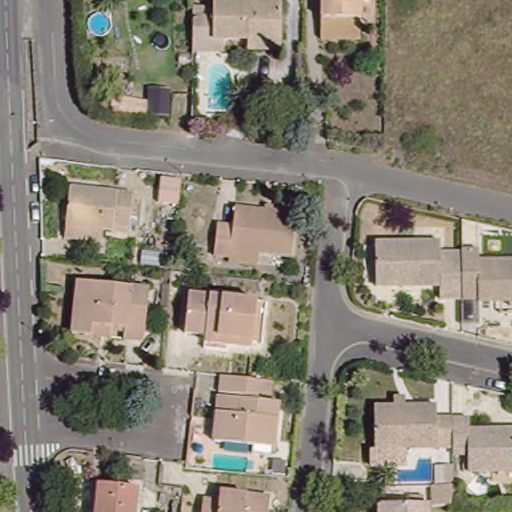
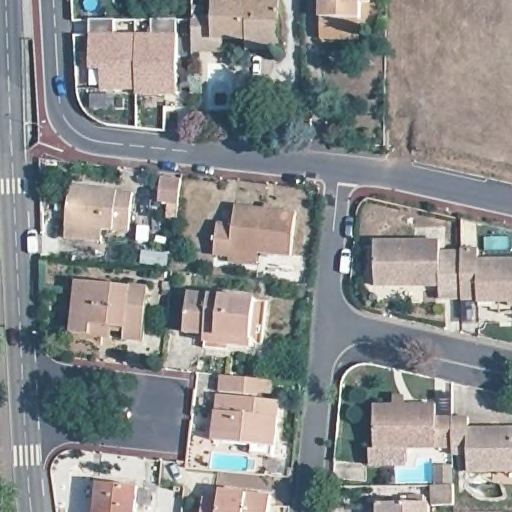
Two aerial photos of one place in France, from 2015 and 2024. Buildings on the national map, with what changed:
unchanged [(249,40),(249,30),(217,30),(217,0),(287,0),(287,40),(249,40)]
unchanged [(350,15),(349,30),(325,31),(325,0),(362,0),(362,13),(350,15)]
new [(102,89),(102,69),(91,70),(90,19),(115,19),(115,34),(136,33),(138,89),(102,89)]
new [(178,58),(179,93),(138,94),(136,33),(194,33),(194,58),(178,58)]
unchanged [(137,185),(136,214),(124,214),(124,228),(73,226),(75,182),(137,185)]
new [(155,187),(175,190),(172,215),(153,212),(155,187)]
unchanged [(302,222),(297,260),(243,255),(242,262),(222,260),(225,230),(242,231),(243,217),(302,222)]
unchanged [(446,294),(446,284),(387,283),(386,239),(443,238),(445,247),(472,248),(473,295),(446,294)]
unchanged [(489,260),(512,260),(512,295),(473,295),(472,248),(488,248),(489,260)]
unchanged [(155,281),(151,333),(78,328),(82,276),(155,281)]
unchanged [(266,289),(262,334),(228,330),(230,319),(198,316),(202,282),(266,289)]
unchanged [(249,383),(218,381),(218,368),(249,371),(272,374),(272,385),(249,383)]
unchanged [(250,435),(213,431),(217,388),(280,394),(275,451),(260,450),(250,435)]
unchanged [(375,467),(375,444),(376,405),(436,404),(435,419),(454,419),(455,445),(406,444),(405,468),(375,467)]
unchanged [(468,450),(455,450),(455,445),(454,419),(471,418),(470,429),(512,428),(512,469),(469,469),(468,450)]
unchanged [(101,480),(146,484),(144,512),(98,512),(101,480)]
unchanged [(281,491),(279,512),(214,512),(216,497),(233,498),(234,487),(281,491)]
unchanged [(379,503),(389,503),(428,502),(428,512),(379,512),(379,503)]

